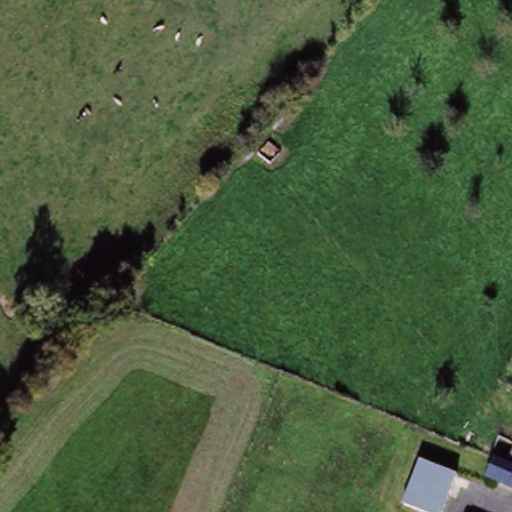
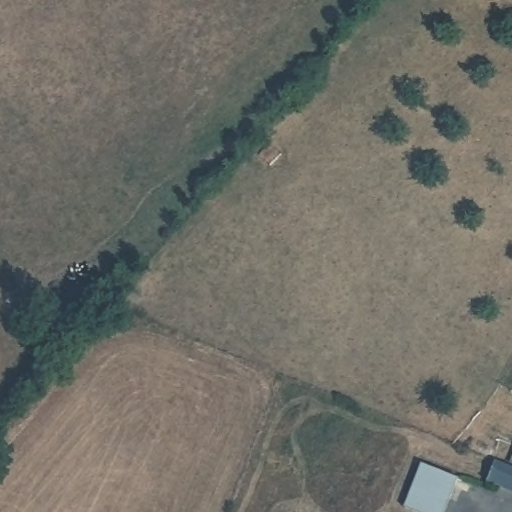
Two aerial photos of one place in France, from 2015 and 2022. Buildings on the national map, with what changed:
unchanged [(495,467),(512,473),(512,494),(488,485),(495,467)]
unchanged [(420,468),(454,482),(442,512),(405,512),(402,511),(420,468)]

